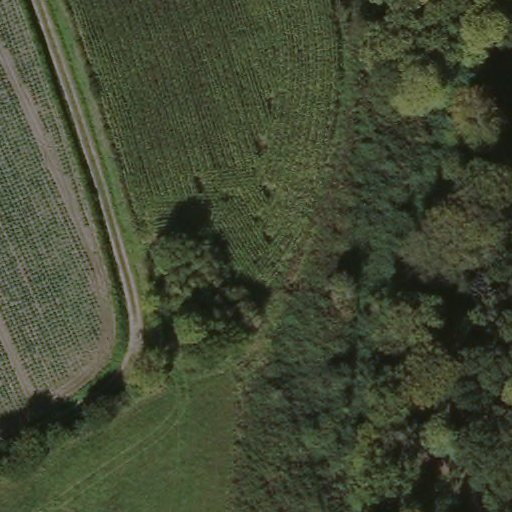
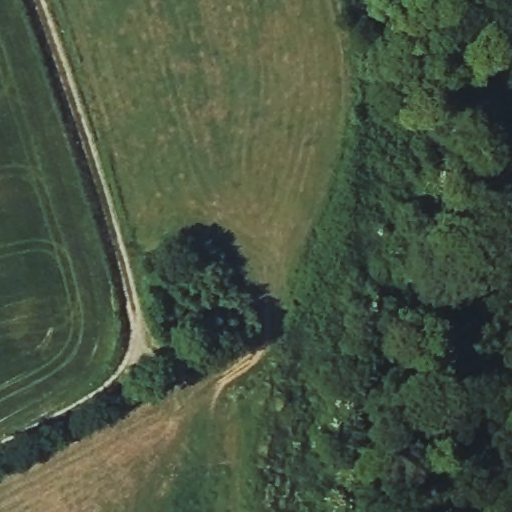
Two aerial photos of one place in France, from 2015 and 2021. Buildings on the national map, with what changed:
[]

